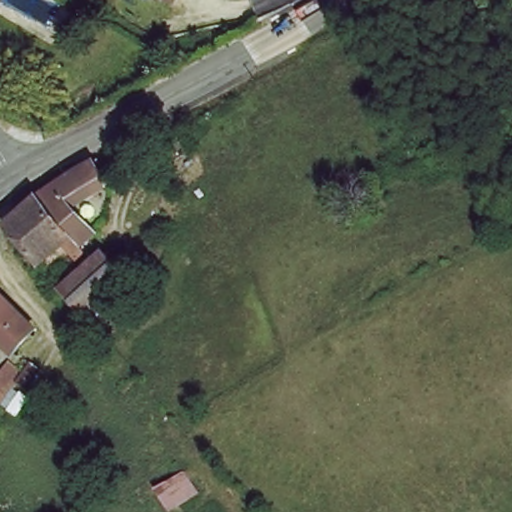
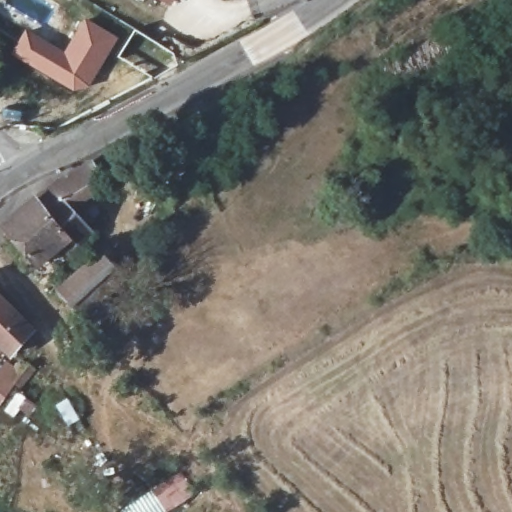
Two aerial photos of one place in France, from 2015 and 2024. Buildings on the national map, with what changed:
new [(25,29),(63,50),(83,16),(118,36),(88,87),(85,90),(77,92),(73,92),(51,79),(11,54),(25,29)]
unchanged [(66,169),(85,158),(102,183),(69,208),(92,235),(80,249),(31,190),(66,169)]
unchanged [(84,253),(73,259),(63,249),(32,273),(0,223),(0,209),(31,190),(80,249),(84,253)]
unchanged [(103,253),(125,275),(85,314),(63,287),(94,260),(103,253)]
unchanged [(0,318),(0,293),(12,305),(0,318)]
unchanged [(10,357),(0,347),(0,318),(12,305),(37,329),(10,357)]
unchanged [(21,379),(8,399),(0,394),(0,386),(0,364),(4,368),(21,379)]
unchanged [(153,490),(180,474),(195,498),(170,512),(164,512),(153,490)]

